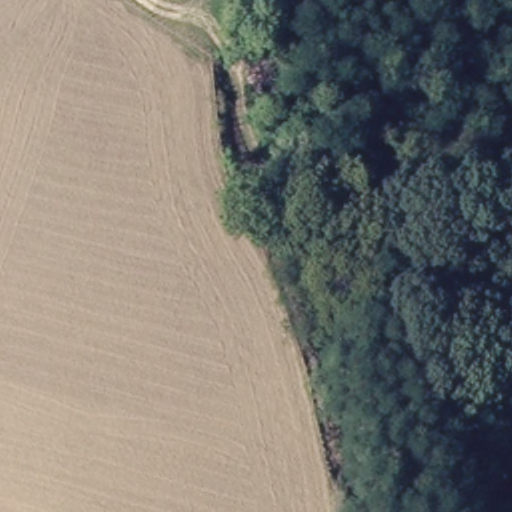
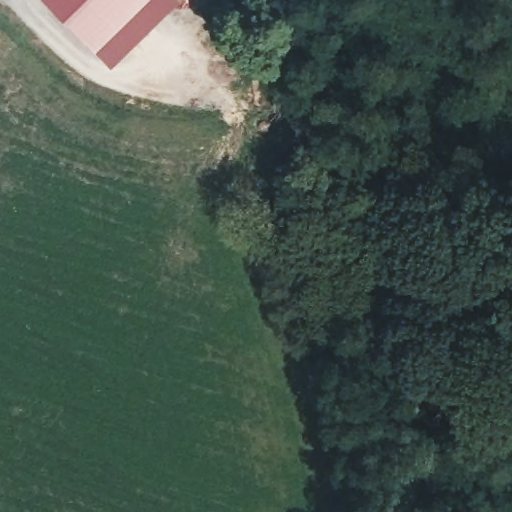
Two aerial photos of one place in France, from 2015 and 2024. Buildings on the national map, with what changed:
new [(112,66),(45,0),(179,0),(112,66)]

